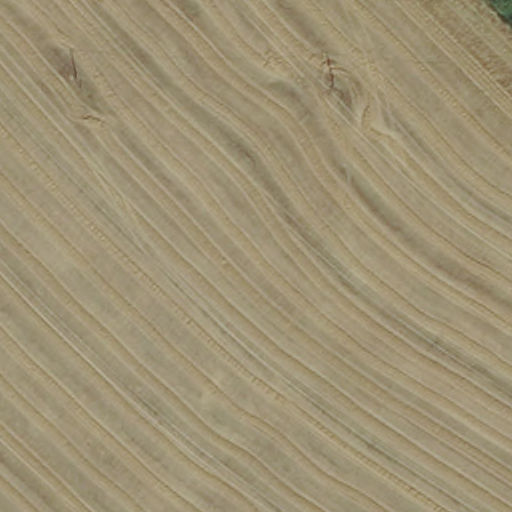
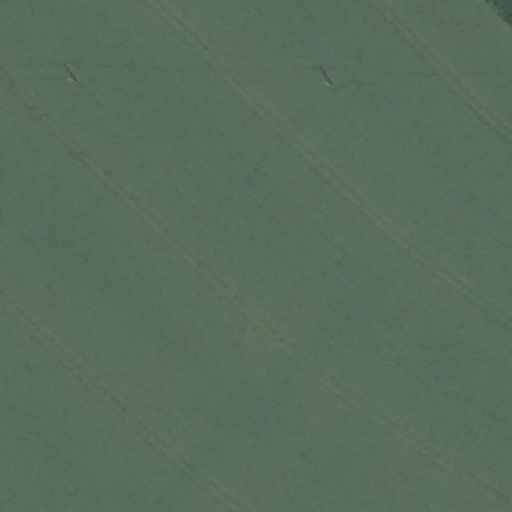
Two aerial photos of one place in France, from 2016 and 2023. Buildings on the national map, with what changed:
[]

